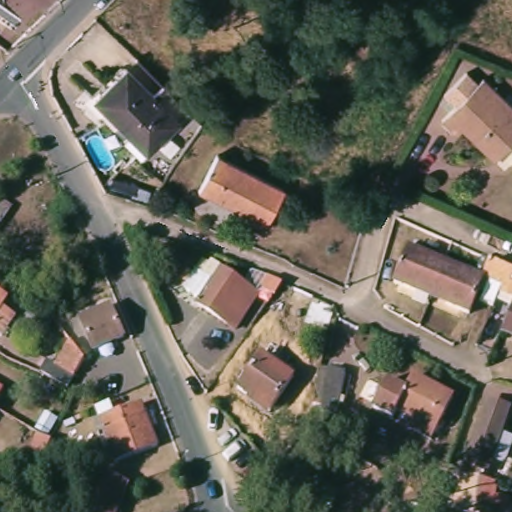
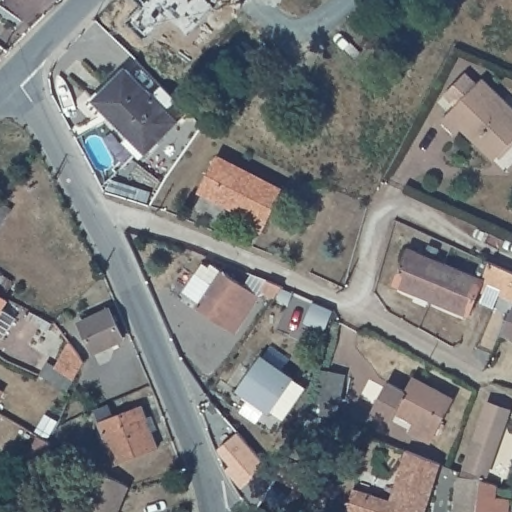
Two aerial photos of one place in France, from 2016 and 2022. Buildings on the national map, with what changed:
unchanged [(115,74),(145,95),(154,83),(185,106),(150,153),(90,108),(115,74)]
unchanged [(512,137),(492,158),(460,128),(451,136),(437,121),(480,76),(512,107),(512,137)]
unchanged [(210,155),(278,190),(257,231),(240,224),(244,214),(193,189),(210,155)]
unchanged [(400,290),(392,287),(406,251),(440,266),(443,267),(430,302),(400,290)]
unchanged [(512,294),(509,300),(495,296),(498,289),(481,282),(477,293),(467,317),(461,315),(430,302),(443,267),(470,278),(476,262),(512,276),(512,294)]
unchanged [(196,279),(206,266),(253,297),(228,334),(190,309),(206,286),(196,279)]
unchanged [(276,290),(268,301),(256,295),(262,284),(276,290)]
unchanged [(3,335),(0,333),(0,296),(4,299),(0,305),(16,314),(3,335)]
unchanged [(509,300),(512,301),(512,340),(495,334),(509,300)]
new [(313,308),(333,318),(323,338),(303,329),(313,308)]
unchanged [(102,311),(116,339),(88,354),(73,325),(102,311)]
unchanged [(53,368),(67,344),(77,364),(76,369),(64,389),(58,386),(39,376),(46,364),(53,368)]
unchanged [(287,379),(264,413),(231,392),(255,358),(287,379)]
unchanged [(332,428),(316,422),(306,419),(318,374),(328,377),(345,382),(332,428)]
unchanged [(452,400),(437,433),(414,423),(399,415),(395,424),(373,414),(387,385),(407,395),(414,381),(452,400)]
unchanged [(2,391),(0,394),(0,389),(2,391)]
unchanged [(489,500),(503,502),(502,512),(457,512),(447,509),(452,471),(456,473),(484,401),(504,410),(481,475),(477,474),(475,480),(491,487),(489,500)]
unchanged [(135,403),(151,446),(112,461),(95,420),(135,403)]
new [(235,430),(265,464),(239,486),(223,468),(228,463),(218,452),(216,447),(235,430)]
unchanged [(50,443),(47,452),(43,461),(28,456),(35,435),(50,443)]
new [(352,492),(389,503),(403,452),(438,464),(425,512),(347,512),(352,492)]
new [(282,462),(304,474),(294,492),(272,480),(282,462)]
unchanged [(100,472),(124,482),(112,512),(85,512),(98,477),(100,472)]

